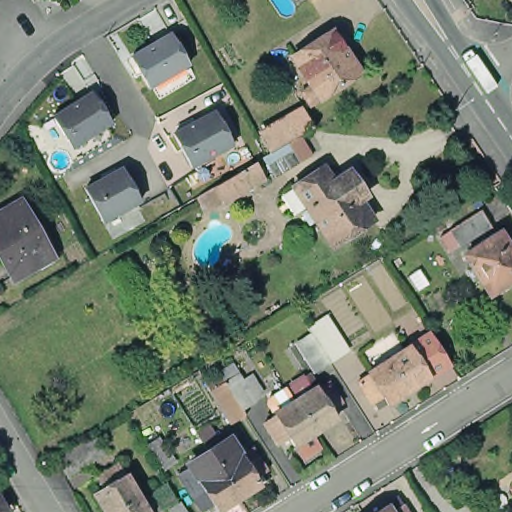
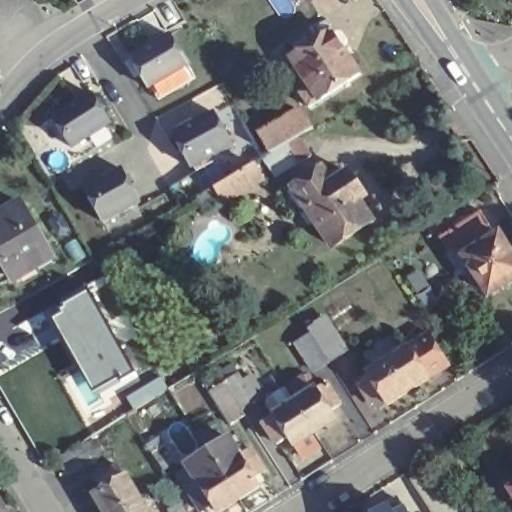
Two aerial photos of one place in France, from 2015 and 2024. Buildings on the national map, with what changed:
unchanged [(306,4),(303,0),(312,0),(306,4)]
unchanged [(148,87),(128,56),(166,32),(186,65),(148,87)]
unchanged [(299,92),(308,87),(291,58),(331,33),(332,37),(339,32),(344,41),(344,45),(339,48),(356,77),(316,101),(307,107),(299,92)]
unchanged [(66,144),(46,112),(85,88),(104,120),(66,144)]
unchanged [(261,129),(303,102),(314,119),(271,146),(261,129)]
unchanged [(189,163),(168,128),(205,106),(226,141),(189,163)]
unchanged [(298,155),(275,168),(268,157),(291,143),(298,155)]
unchanged [(203,192),(216,184),(253,162),(263,178),(227,200),(213,208),(203,192)]
unchanged [(135,197),(99,219),(78,184),(114,163),(135,197)]
unchanged [(331,256),(293,194),(321,176),(331,190),(349,181),(364,205),(358,210),(369,230),(331,256)]
unchanged [(54,253),(16,275),(0,249),(0,208),(20,196),(54,253)]
unchanged [(452,238),(443,224),(476,202),(484,216),(452,238)]
unchanged [(466,257),(499,233),(512,253),(512,280),(491,294),(466,257)]
new [(62,311),(59,307),(89,289),(117,336),(136,375),(96,396),(51,318),(62,311)]
unchanged [(297,332),(312,322),(309,317),(326,307),(347,341),(331,351),(314,361),(297,332)]
unchanged [(369,381),(366,378),(387,365),(408,351),(410,354),(421,346),(434,365),(422,372),(429,382),(407,395),(386,408),(379,398),(369,405),(358,386),(369,381)]
unchanged [(239,403),(240,405),(226,414),(206,380),(219,371),(234,363),(251,390),(248,391),(251,395),(239,403)]
new [(161,375),(169,389),(134,411),(125,397),(161,375)]
new [(191,379),(206,402),(185,415),(171,391),(191,379)]
unchanged [(276,429),(274,426),(294,413),(299,411),(289,396),(304,387),(314,402),(316,400),(317,401),(328,394),(340,415),(329,421),(334,429),(314,443),(293,456),(288,449),(278,455),(264,436),(276,429)]
unchanged [(199,484),(191,470),(210,457),(208,453),(229,441),(240,459),(241,461),(251,454),(264,476),(254,482),(259,490),(239,503),(226,512),(217,512),(214,508),(208,512),(200,512),(188,493),(201,486),(199,484)]
new [(81,443),(93,461),(68,476),(57,458),(81,443)]
unchanged [(110,490),(104,478),(124,466),(131,477),(134,475),(146,496),(154,512),(111,512),(102,495),(110,490)]
unchanged [(512,486),(512,500),(506,490),(512,486)]
unchanged [(397,497),(401,504),(406,512),(374,512),(385,505),(397,497)]
unchanged [(3,507),(0,509),(0,503),(3,507)]

